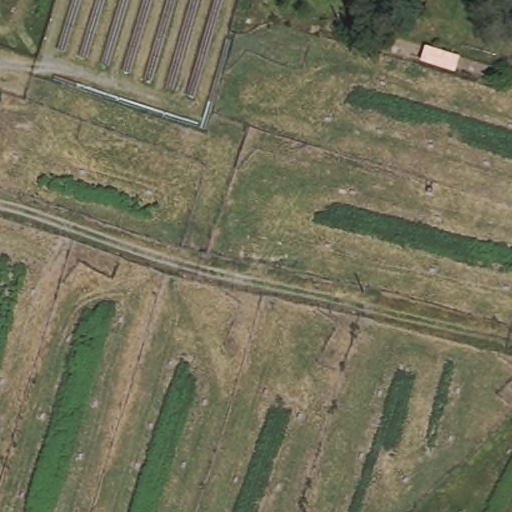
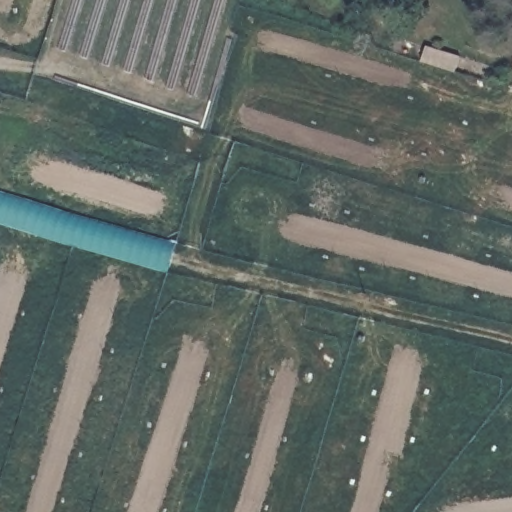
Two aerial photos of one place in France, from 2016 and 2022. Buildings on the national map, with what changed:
unchanged [(426,45),(460,55),(454,71),(421,60),(426,45)]
demolished [(420,65),(452,75),(447,90),(415,79),(420,65)]
new [(0,222),(0,191),(176,242),(166,270),(0,222)]

